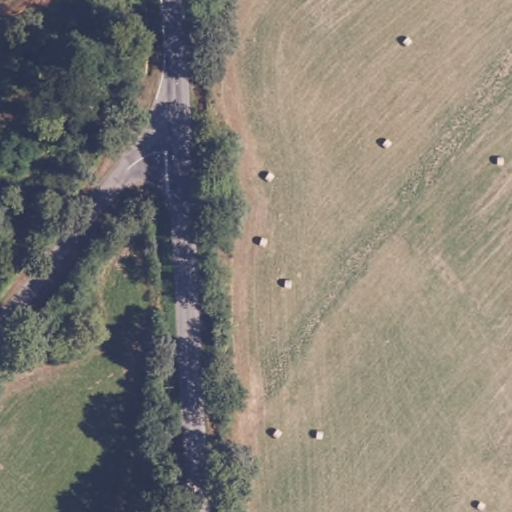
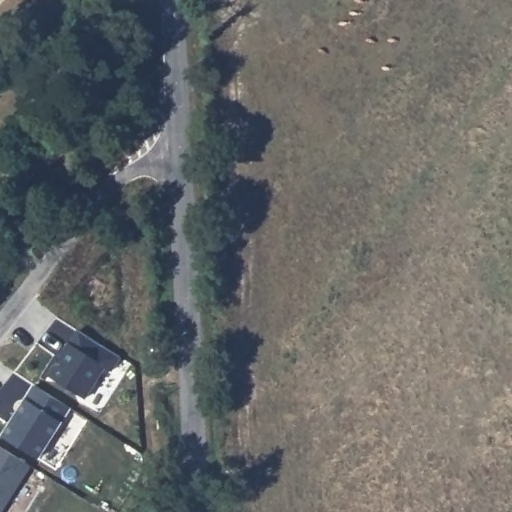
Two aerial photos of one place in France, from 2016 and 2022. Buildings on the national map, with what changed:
new [(113,371),(104,366),(85,398),(47,374),(69,340),(77,329),(122,358),(113,371)]
new [(59,421),(61,422),(38,459),(0,435),(24,397),(34,383),(71,406),(59,421)]
new [(30,466),(0,512),(0,447),(30,466)]

